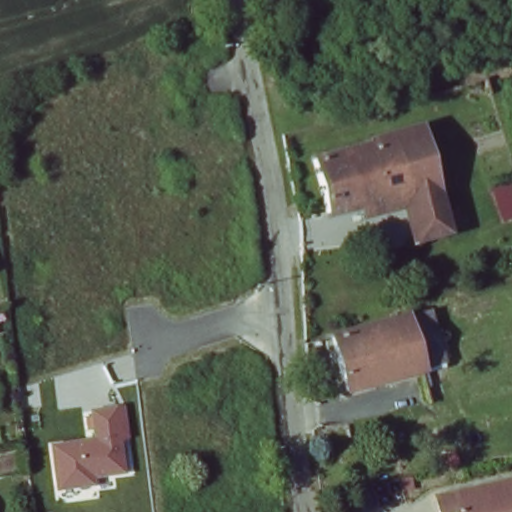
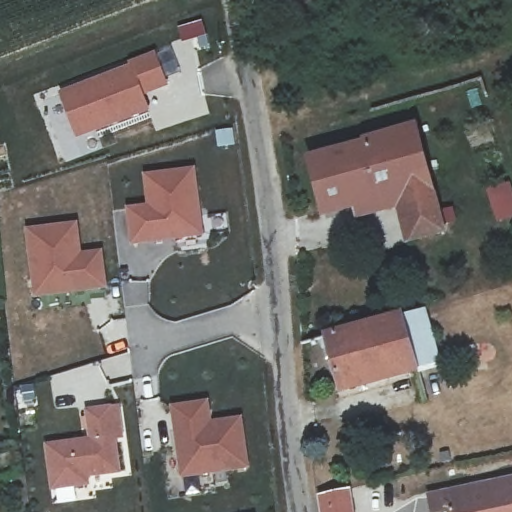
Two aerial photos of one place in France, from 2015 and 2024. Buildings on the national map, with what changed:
new [(142,95),(149,112),(77,139),(59,93),(130,65),(129,63),(155,53),(169,86),(142,95)]
unchanged [(306,159),(366,144),(365,138),(419,124),(442,228),(408,236),(399,204),(387,207),(382,190),(318,207),(306,159)]
new [(131,245),(126,207),(147,205),(143,174),(196,168),(203,237),(131,245)]
unchanged [(512,188),(512,220),(505,222),(495,184),(510,180),(512,188)]
new [(106,290),(34,298),(26,228),(78,222),(81,253),(102,251),(106,290)]
unchanged [(424,307),(429,330),(435,363),(411,369),(337,387),(324,332),(398,314),(424,307)]
new [(248,471),(180,479),(170,407),(208,399),(212,421),(241,417),(248,471)]
unchanged [(124,442),(118,442),(120,474),(94,478),(96,486),(52,491),(44,442),(88,437),(87,411),(119,408),(124,442)]
unchanged [(444,511),(436,512),(428,512),(425,496),(512,479),(512,512),(444,512),(444,511)]

